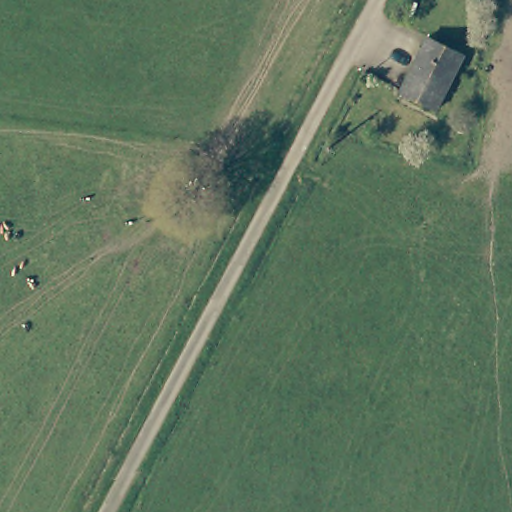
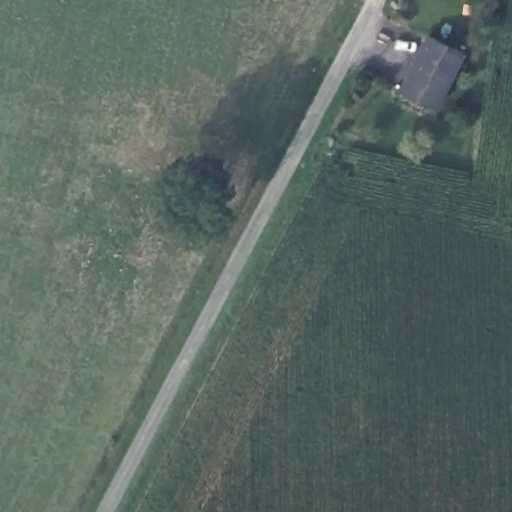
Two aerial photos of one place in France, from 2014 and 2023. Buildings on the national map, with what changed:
unchanged [(464,52),(434,108),(400,90),(431,35),(464,52)]

